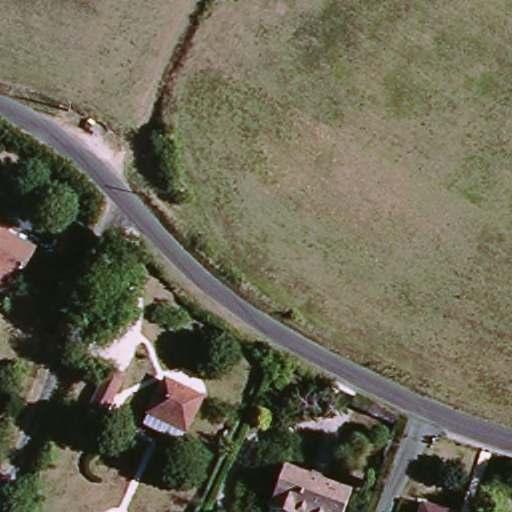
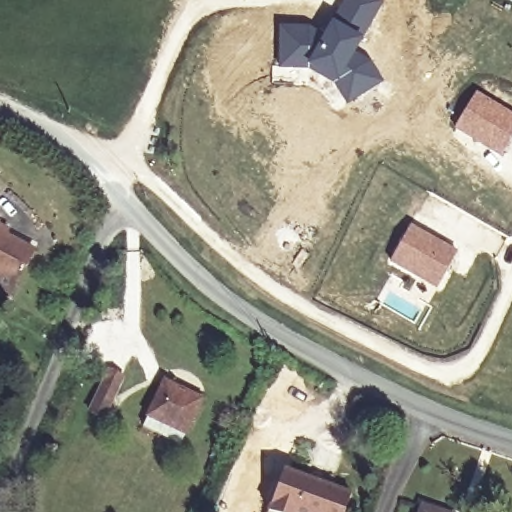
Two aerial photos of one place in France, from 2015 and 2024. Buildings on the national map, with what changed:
new [(319,29),(323,31),(342,0),(384,0),(357,49),(369,59),(384,81),(347,105),(334,84),(318,74),(308,70),(279,69),(278,24),(305,25),(319,29)]
new [(477,90),(512,111),(512,138),(501,158),(454,129),(477,90)]
new [(411,222),(459,249),(437,290),(387,261),(411,222)]
unchanged [(0,224),(36,243),(16,280),(0,272),(0,224)]
unchanged [(126,378),(101,419),(87,411),(111,370),(126,378)]
unchanged [(148,413),(166,383),(202,404),(183,434),(148,413)]
unchanged [(286,462),(354,494),(345,512),(260,512),(286,462)]
unchanged [(418,503),(445,512),(415,512),(418,503)]

